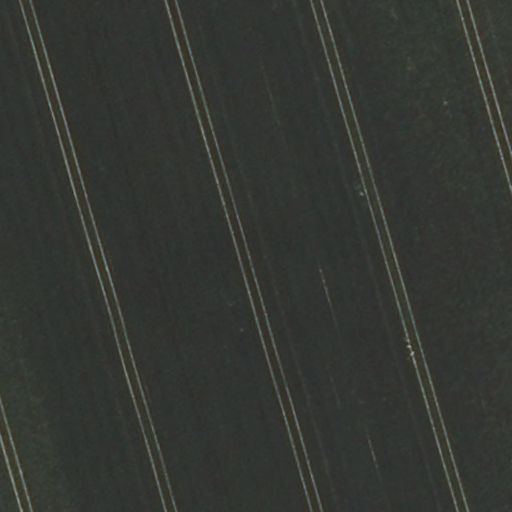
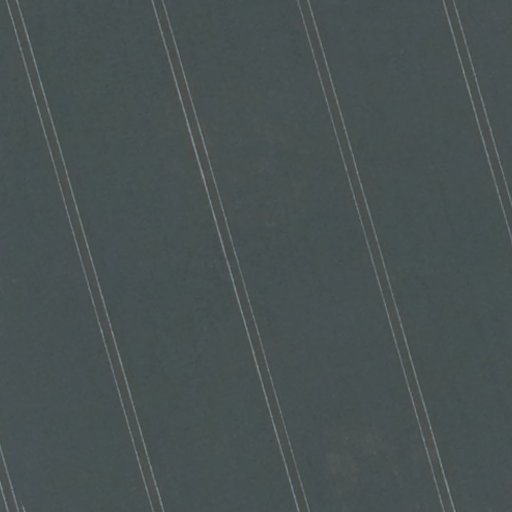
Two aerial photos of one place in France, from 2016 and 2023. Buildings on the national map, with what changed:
[]

